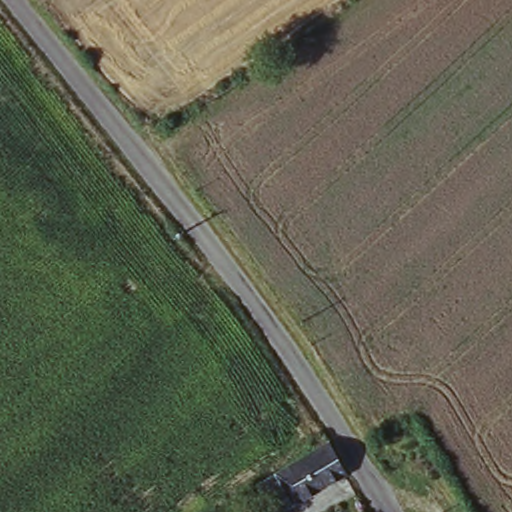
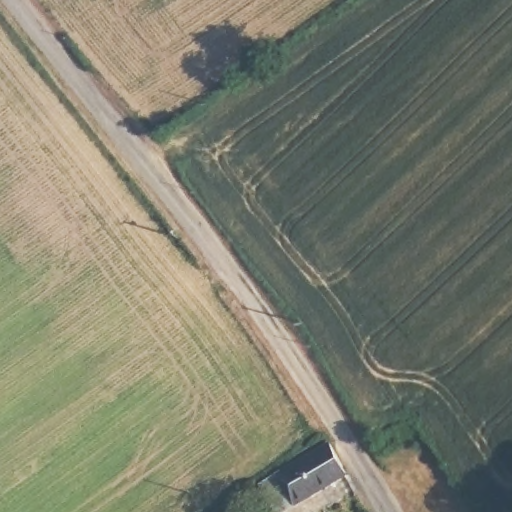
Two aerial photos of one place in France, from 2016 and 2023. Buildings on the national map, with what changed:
unchanged [(328,438),(347,474),(295,501),(275,471),(328,438)]

